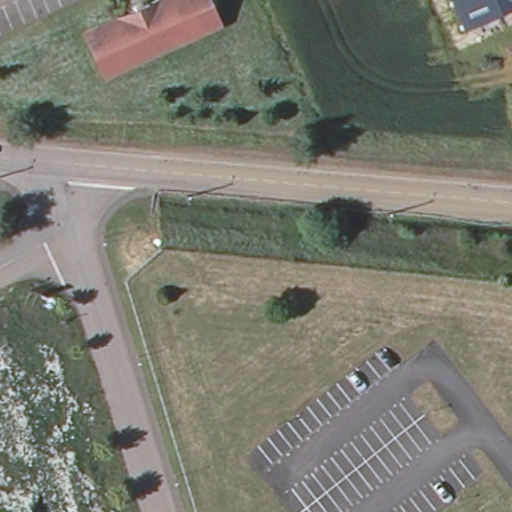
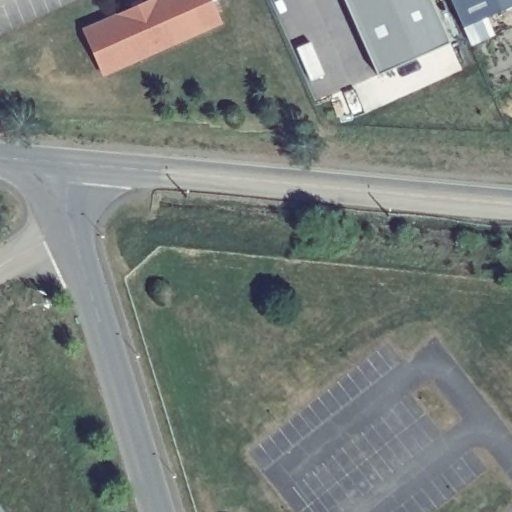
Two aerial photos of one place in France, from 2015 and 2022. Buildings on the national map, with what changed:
unchanged [(103,85),(85,42),(179,0),(203,0),(218,35),(103,85)]
new [(378,74),(345,0),(430,0),(449,43),(378,74)]
unchanged [(451,0),(512,0),(512,6),(462,28),(451,0)]
unchanged [(0,507),(4,512),(0,512),(0,507)]

